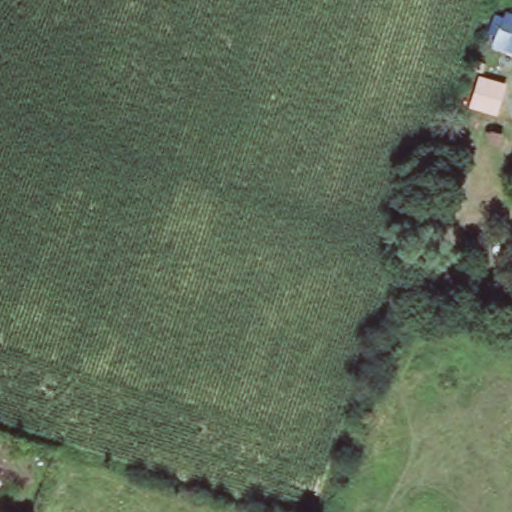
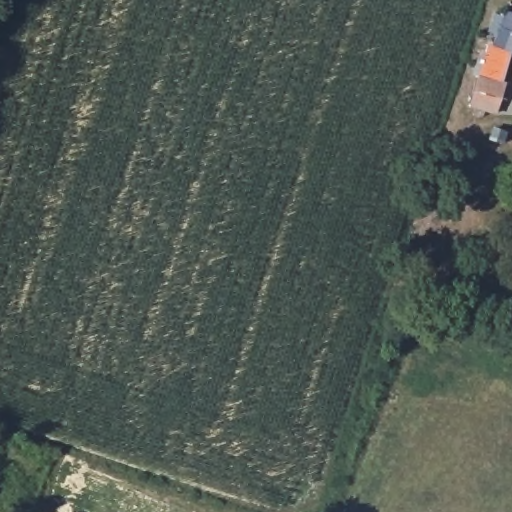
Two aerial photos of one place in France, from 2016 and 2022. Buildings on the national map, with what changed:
unchanged [(512,52),(493,47),(501,18),(512,20),(512,52)]

